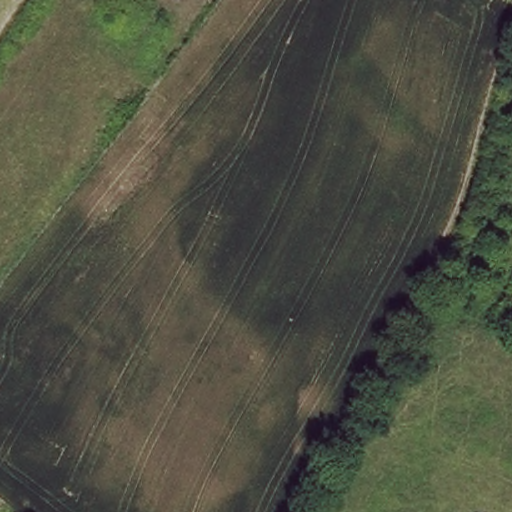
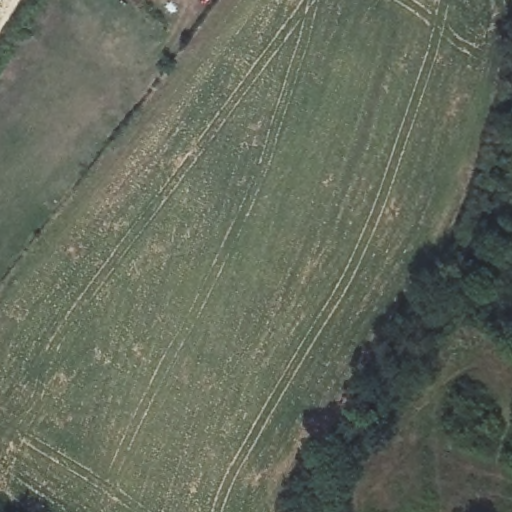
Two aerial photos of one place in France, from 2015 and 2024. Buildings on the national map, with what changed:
[]

